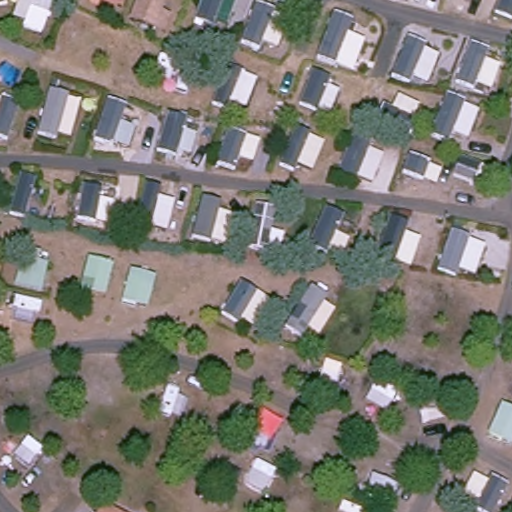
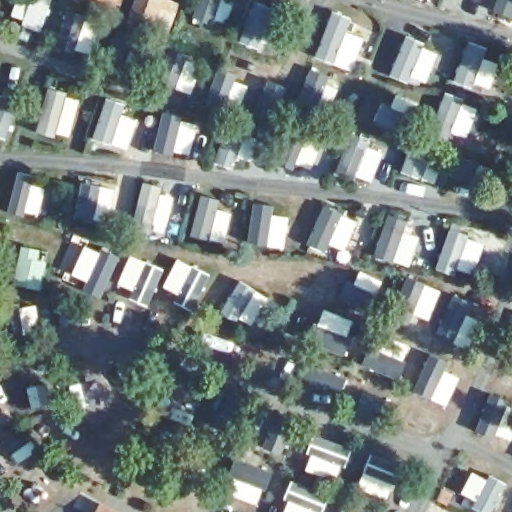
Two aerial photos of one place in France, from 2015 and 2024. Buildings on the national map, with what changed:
unchanged [(117,0),(114,8),(96,0),(117,0)]
unchanged [(154,27),(130,18),(138,0),(164,0),(160,10),(171,14),(164,31),(154,27)]
unchanged [(117,512),(93,512),(98,503),(117,512)]

